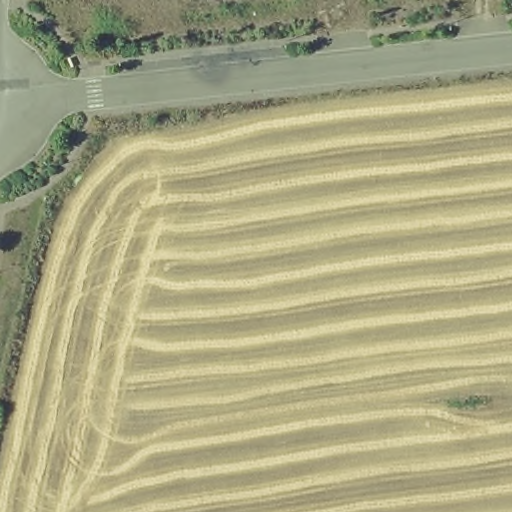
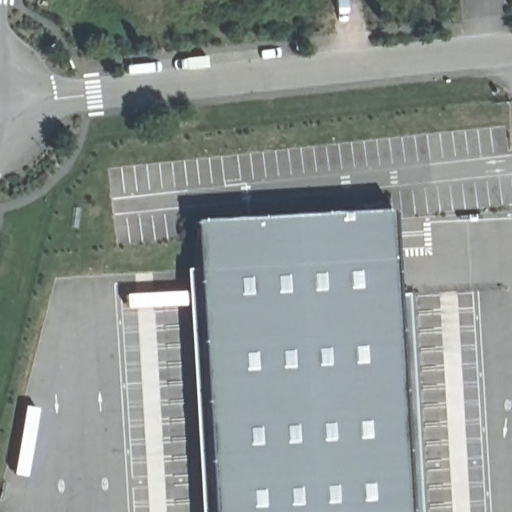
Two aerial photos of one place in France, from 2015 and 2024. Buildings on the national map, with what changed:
new [(412,512),(211,512),(195,218),(395,207),(412,512)]

